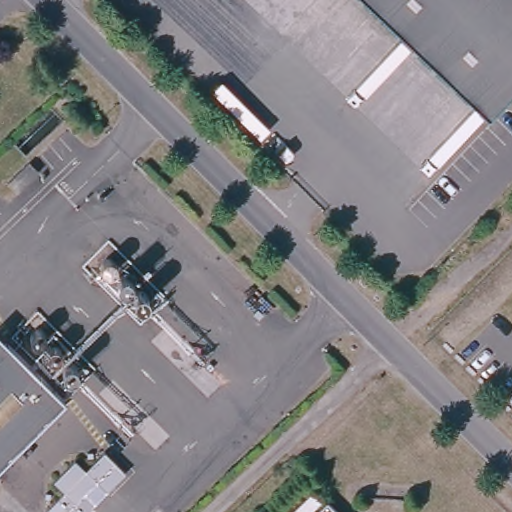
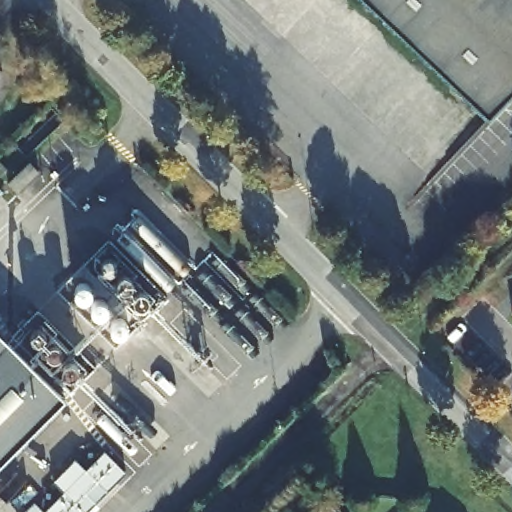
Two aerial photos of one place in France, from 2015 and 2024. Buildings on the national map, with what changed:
unchanged [(366,0),(512,0),(512,97),(492,118),(366,0)]
unchanged [(50,169),(27,190),(16,179),(38,157),(50,169)]
unchanged [(0,340),(6,347),(0,353),(0,340)]
unchanged [(0,463),(0,353),(6,347),(61,406),(0,463)]
unchanged [(126,476),(109,493),(100,483),(78,504),(86,512),(48,512),(67,493),(56,482),(77,461),(90,473),(107,455),(126,476)]
unchanged [(328,496),(344,512),(313,512),(328,496)]

